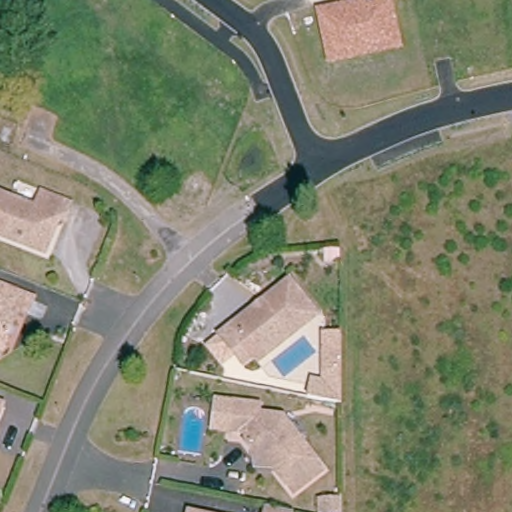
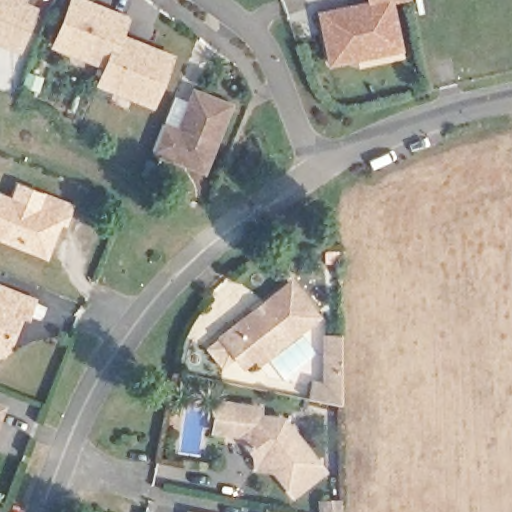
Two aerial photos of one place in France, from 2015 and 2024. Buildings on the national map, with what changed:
new [(18,3),(30,8),(15,46),(0,40),(0,0),(19,0),(18,3)]
new [(89,5),(106,11),(122,17),(115,35),(103,65),(52,44),(69,0),(79,0),(89,5)]
unchanged [(315,10),(363,0),(395,0),(392,0),(403,50),(328,67),(315,10)]
new [(115,35),(132,42),(148,49),(167,56),(148,104),(132,97),(96,82),(103,65),(115,35)]
new [(165,157),(149,150),(160,124),(174,130),(190,91),(226,105),(205,157),(199,170),(165,157)]
unchanged [(0,243),(0,207),(30,219),(36,206),(64,217),(59,235),(52,231),(40,259),(0,243)]
unchanged [(339,261),(324,261),(324,250),(339,250),(339,261)]
unchanged [(257,358),(244,369),(222,343),(288,289),(318,322),(290,345),(264,367),(257,358)]
unchanged [(0,358),(0,291),(31,303),(24,322),(16,319),(4,349),(1,358),(0,358)]
unchanged [(340,405),(306,398),(310,384),(323,387),(323,355),(340,355),(340,405)]
unchanged [(253,461),(245,448),(246,437),(228,435),(233,405),(259,410),(258,420),(286,424),(324,475),(292,498),(274,475),(251,472),(253,461)]
unchanged [(342,495),(340,512),(314,512),(315,495),(342,495)]

